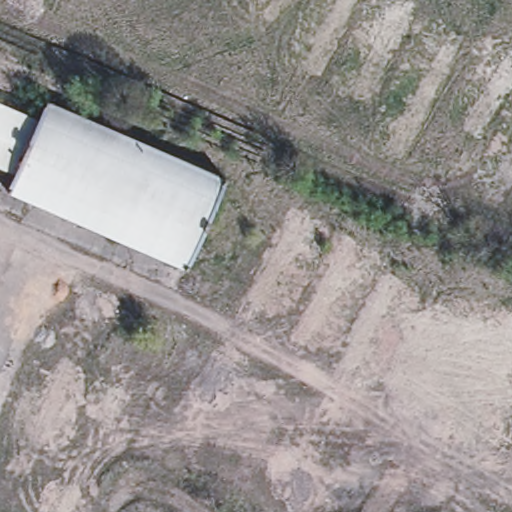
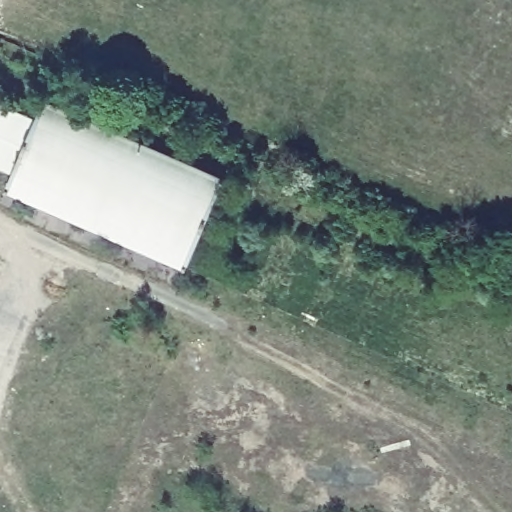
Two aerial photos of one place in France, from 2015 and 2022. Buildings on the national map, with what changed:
unchanged [(44,97),(225,175),(186,265),(5,187),(13,169),(36,114),(44,97)]
unchanged [(13,169),(0,163),(0,99),(36,114),(13,169)]

